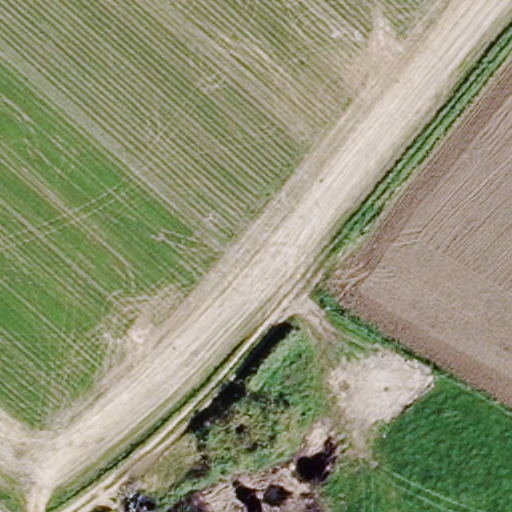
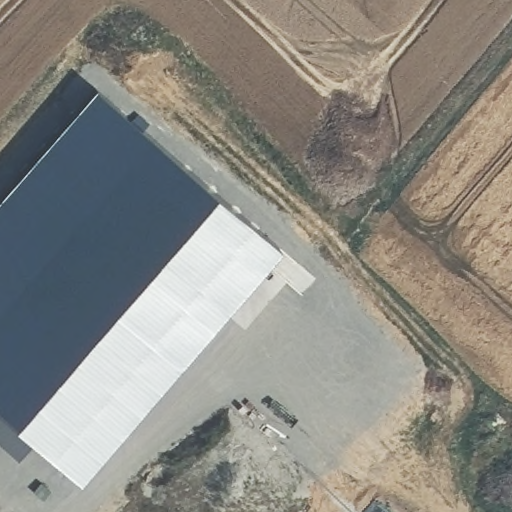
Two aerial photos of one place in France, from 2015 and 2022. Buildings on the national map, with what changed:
new [(0,414),(0,211),(102,96),(279,254),(84,488),(0,414)]
new [(139,113),(161,134),(154,143),(130,121),(139,113)]
new [(35,446),(20,459),(0,441),(0,415),(35,446)]

